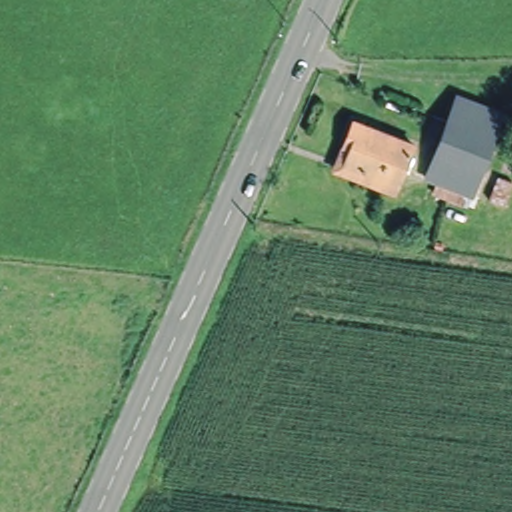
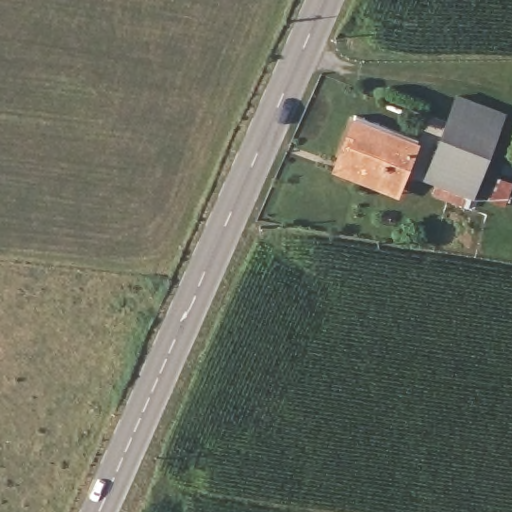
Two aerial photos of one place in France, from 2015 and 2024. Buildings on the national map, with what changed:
unchanged [(472,194),(423,175),(455,92),(505,110),(472,194)]
unchanged [(396,179),(382,174),(380,179),(342,164),(348,146),(345,144),(352,120),(412,143),(396,179)]

